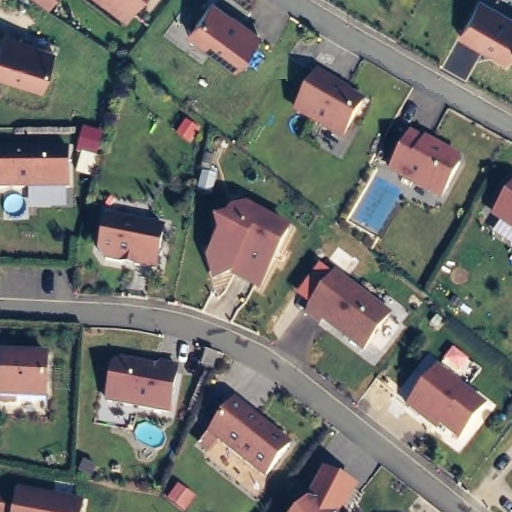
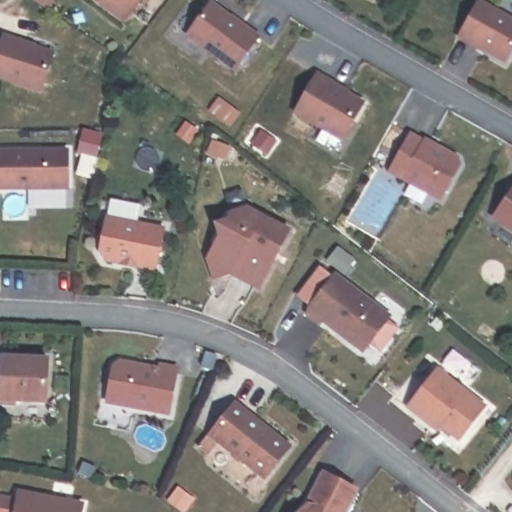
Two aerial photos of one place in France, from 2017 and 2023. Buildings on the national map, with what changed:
unchanged [(49,8),(36,0),(54,0),(49,8)]
unchanged [(125,23),(96,0),(142,0),(125,23)]
unchanged [(264,36),(234,72),(185,31),(208,0),(217,0),(264,36)]
unchanged [(507,64),(456,36),(476,0),(479,0),(512,16),(512,56),(507,64)]
unchanged [(47,97),(0,79),(0,50),(5,32),(60,51),(47,97)]
unchanged [(366,99),(342,139),(293,108),(316,67),(366,99)]
unchanged [(419,138),(422,132),(462,156),(438,201),(387,168),(405,131),(419,138)]
unchanged [(67,189),(0,186),(0,147),(68,148),(67,189)]
unchanged [(492,216),(512,187),(512,233),(492,216)]
unchanged [(247,202),(291,229),(259,288),(232,271),(211,273),(204,254),(231,203),(247,202)]
unchanged [(164,225),(156,272),(103,258),(97,247),(104,214),(164,225)]
unchanged [(363,350),(322,315),(335,294),(324,287),(338,269),(390,314),(363,350)]
unchanged [(46,402),(0,400),(0,353),(48,355),(46,402)]
unchanged [(177,372),(170,411),(107,395),(115,358),(177,372)]
unchanged [(486,405),(457,437),(442,424),(437,431),(406,404),(436,364),(486,405)]
unchanged [(291,442),(265,480),(207,433),(235,397),(291,442)]
unchanged [(352,487),(342,512),(296,512),(308,499),(325,471),(352,487)]
unchanged [(15,488),(86,501),(83,512),(0,512),(0,494),(12,496),(15,488)]

